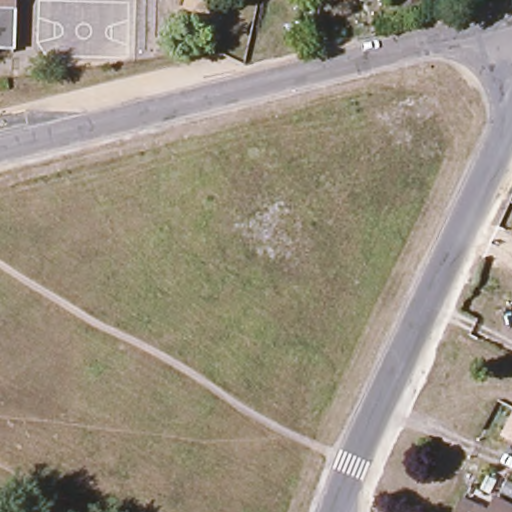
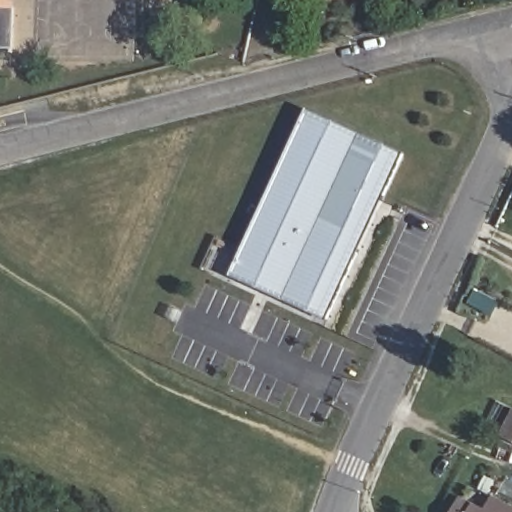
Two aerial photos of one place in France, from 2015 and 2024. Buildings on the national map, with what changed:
unchanged [(0,55),(0,0),(12,0),(11,11),(9,56),(0,55)]
unchanged [(328,0),(334,0),(328,2),(328,0)]
new [(405,155),(384,202),(380,200),(357,249),(361,250),(329,319),(236,276),(312,112),(405,155)]
unchanged [(501,436),(512,414),(512,441),(501,436)]
unchanged [(490,504),(505,512),(486,512),(490,504)]
unchanged [(459,505),(474,512),(455,512),(459,505)]

